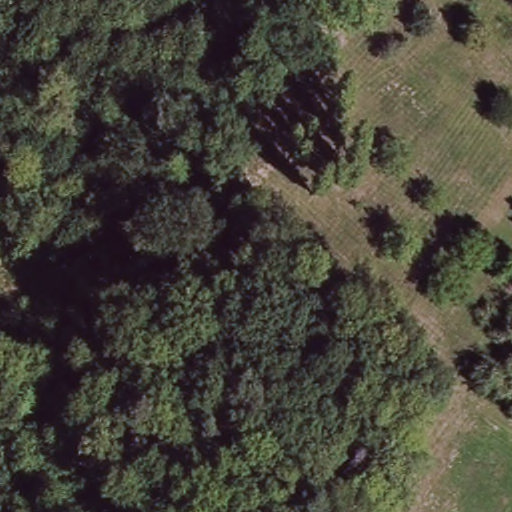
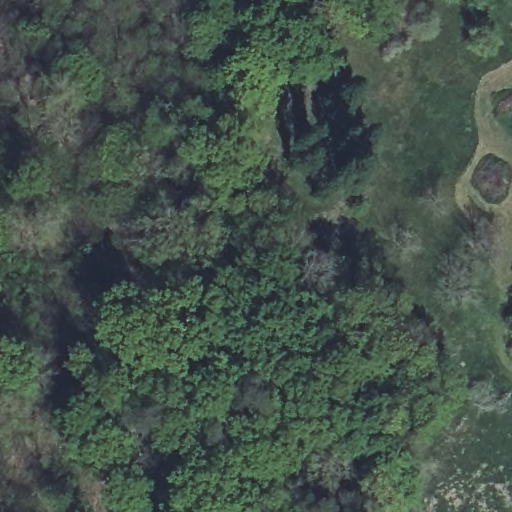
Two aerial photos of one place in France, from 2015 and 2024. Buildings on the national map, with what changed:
[]

